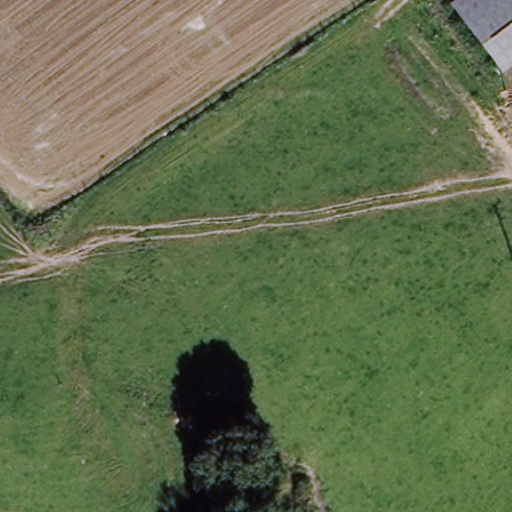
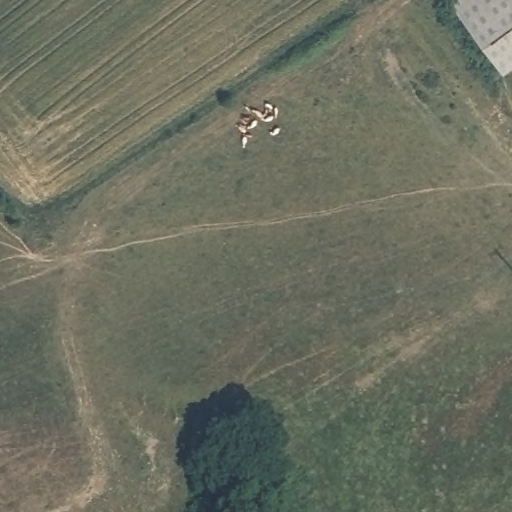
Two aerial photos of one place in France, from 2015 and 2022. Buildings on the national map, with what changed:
unchanged [(508,74),(455,4),(460,0),(512,0),(512,71),(508,74)]

